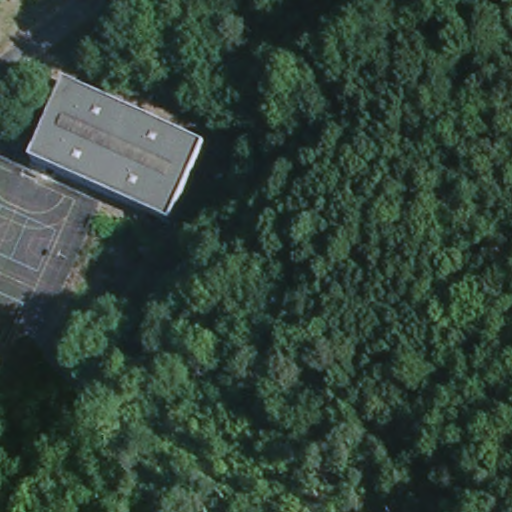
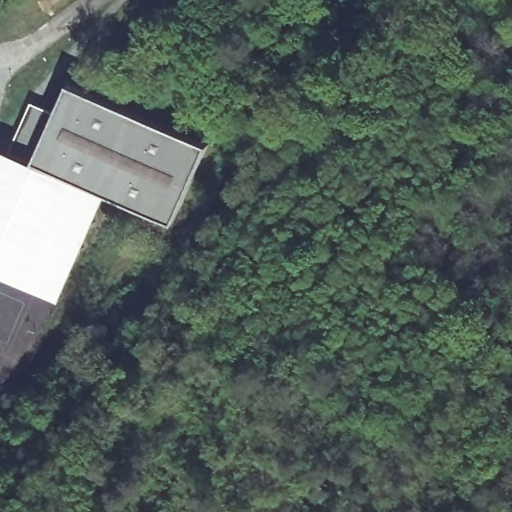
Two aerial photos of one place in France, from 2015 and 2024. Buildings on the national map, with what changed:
unchanged [(209,146),(173,224),(33,164),(68,85),(209,146)]
new [(30,103),(55,114),(33,164),(107,196),(60,301),(0,274),(0,148),(9,151),(30,103)]

